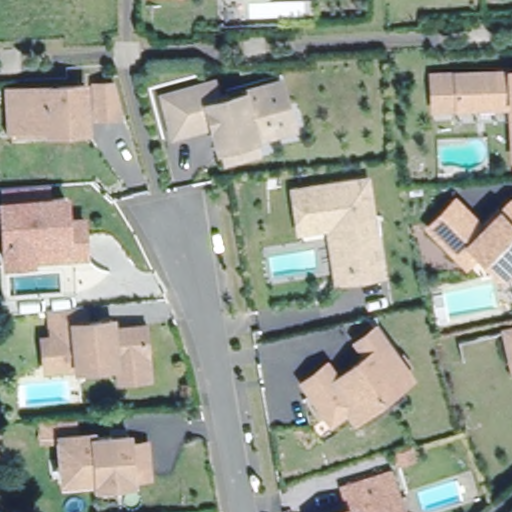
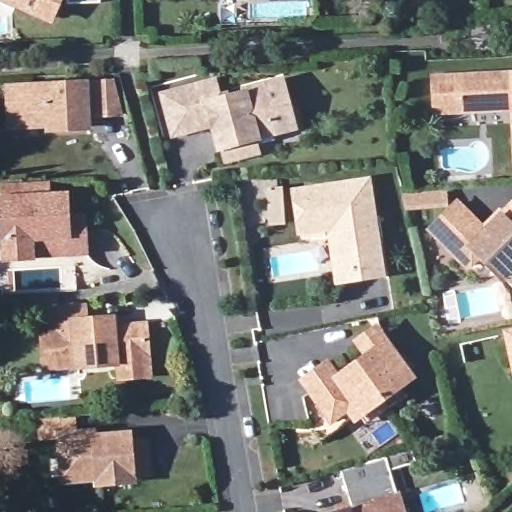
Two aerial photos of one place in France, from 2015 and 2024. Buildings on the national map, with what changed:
new [(62,4),(53,25),(0,2),(0,0),(100,0),(100,2),(62,4)]
unchanged [(461,125),(461,111),(436,112),(434,77),(512,74),(512,124),(461,125)]
unchanged [(98,109),(96,79),(113,78),(120,108),(98,109)]
unchanged [(9,83),(23,82),(86,79),(88,119),(25,122),(10,123),(9,83)]
unchanged [(225,161),(222,146),(219,147),(214,125),(203,127),(174,135),(164,95),(205,85),(214,83),(219,98),(280,82),(293,128),(254,138),(258,153),(225,161)]
unchanged [(283,173),(284,187),(269,188),(268,175),(283,173)]
unchanged [(347,282),(346,273),(339,228),(307,233),(305,225),(300,192),(374,181),(384,248),(389,275),(347,282)]
unchanged [(0,246),(0,185),(45,182),(46,197),(60,196),(62,219),(63,236),(26,239),(27,256),(28,259),(1,261),(0,246)]
unchanged [(509,273),(487,250),(474,262),(437,225),(464,199),(492,227),(512,207),(512,275),(509,273)]
unchanged [(80,218),(82,253),(27,256),(26,239),(63,236),(62,219),(80,218)]
unchanged [(118,378),(116,363),(78,366),(78,363),(45,366),(43,337),(53,337),(50,307),(84,304),(85,321),(102,320),(113,319),(114,328),(145,325),(148,352),(149,375),(118,378)]
unchanged [(356,415),(317,443),(306,428),(324,415),(300,381),(317,369),(324,364),(334,378),(364,356),(354,343),(373,329),(383,343),(397,363),(402,360),(408,368),(403,371),(408,377),(394,386),(402,396),(363,425),(356,415)]
unchanged [(509,334),(512,333),(512,350),(509,334)]
unchanged [(94,494),(93,489),(93,484),(59,487),(56,446),(38,448),(35,428),(69,426),(70,445),(90,443),(90,447),(124,444),(124,454),(140,453),(144,485),(128,486),(128,491),(94,494)]
unchanged [(353,510),(346,487),(392,473),(399,500),(403,512),(346,512),(353,510)]

